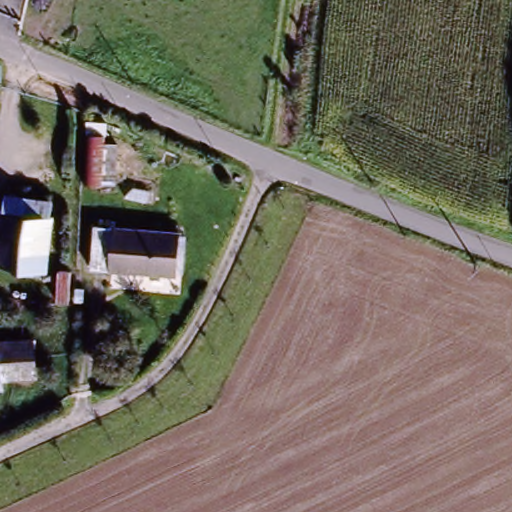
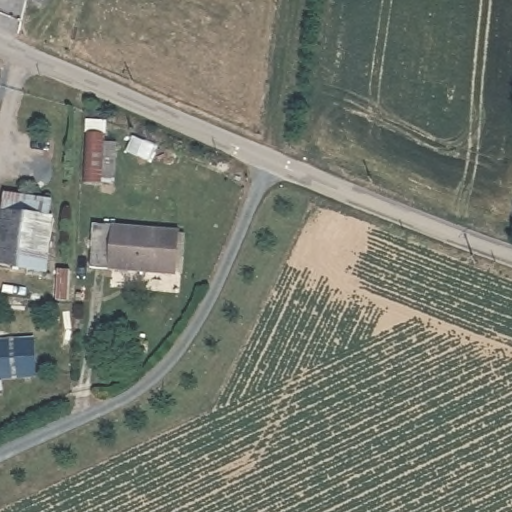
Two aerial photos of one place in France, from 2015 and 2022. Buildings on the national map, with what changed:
unchanged [(119,136),(114,185),(75,183),(83,132),(119,136)]
unchanged [(48,271),(0,267),(0,218),(52,222),(48,271)]
unchanged [(178,229),(173,278),(88,269),(93,224),(178,229)]
unchanged [(35,378),(0,379),(0,335),(31,335),(35,378)]

